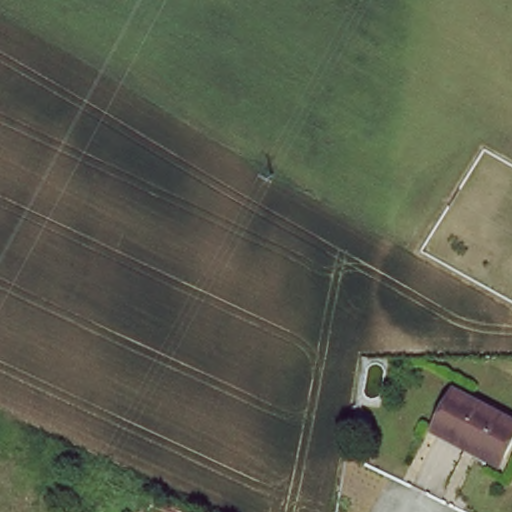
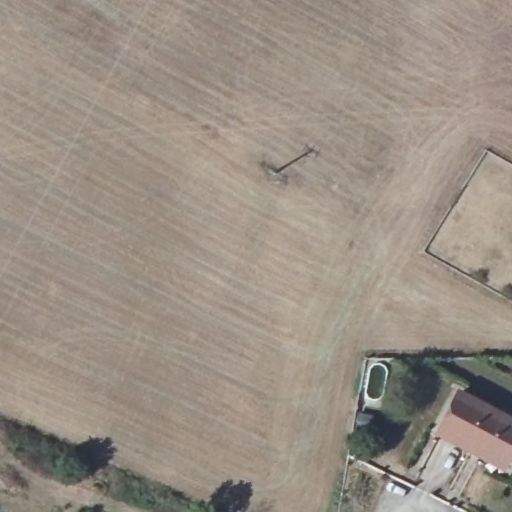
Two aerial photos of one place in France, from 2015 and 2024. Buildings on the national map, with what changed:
unchanged [(438,431),(461,391),(512,420),(512,457),(510,460),(506,468),(470,449),(438,431)]

